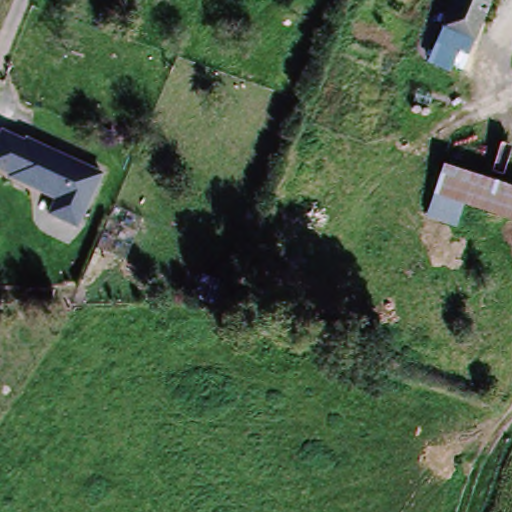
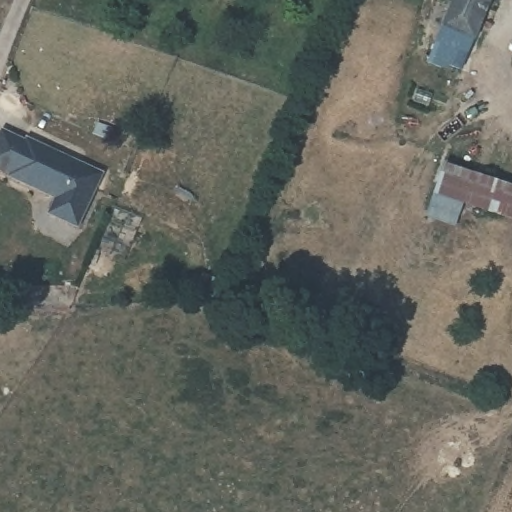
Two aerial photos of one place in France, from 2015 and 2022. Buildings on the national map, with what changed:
unchanged [(473,55),(442,42),(458,0),(497,0),(473,55)]
unchanged [(32,142),(34,139),(109,174),(84,227),(56,215),(63,199),(16,177),(17,174),(0,166),(0,149),(9,131),(32,142)]
unchanged [(453,170),(512,194),(512,225),(442,195),(453,170)]

